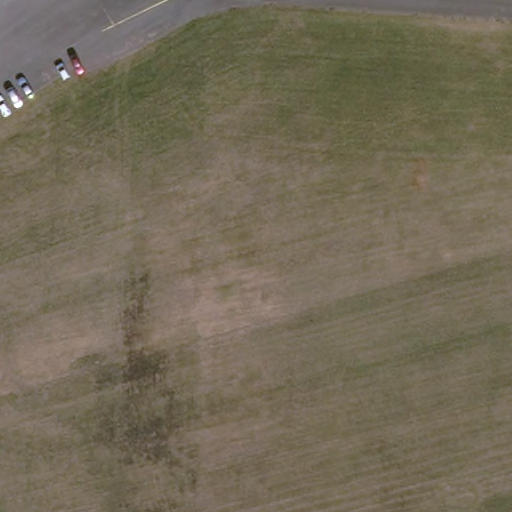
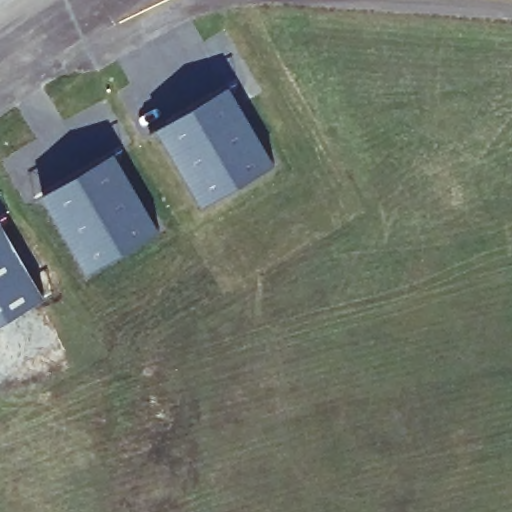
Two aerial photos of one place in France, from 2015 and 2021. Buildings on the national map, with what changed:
new [(227,83),(275,161),(202,203),(157,126),(227,83)]
new [(113,149),(159,227),(88,270),(42,192),(113,149)]
new [(44,293),(0,320),(0,223),(44,293)]

